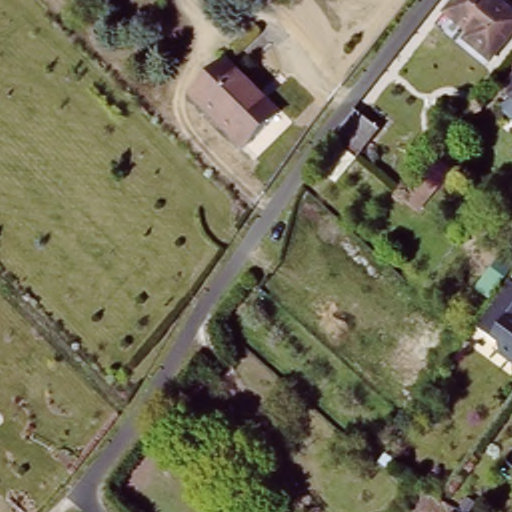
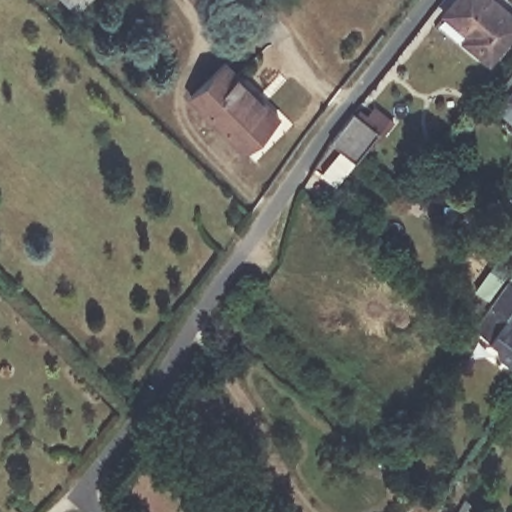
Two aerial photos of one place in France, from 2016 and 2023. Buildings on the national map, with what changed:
unchanged [(69,0),(82,0),(77,5),(75,6),(69,0)]
unchanged [(491,0),(497,5),(500,1),(512,12),(512,36),(491,61),(467,41),(471,35),(447,15),(459,0),(491,0)]
unchanged [(180,91),(214,56),(227,69),(230,66),(282,117),(244,155),(234,145),(180,91)]
unchanged [(507,99),(512,93),(512,102),(507,99)]
unchanged [(357,163),(330,141),(352,113),(379,134),(357,163)]
unchanged [(512,292),(512,323),(512,372),(493,359),(491,348),(469,332),(499,290),(502,285),(512,292)]
unchanged [(452,509),(458,512),(451,512),(452,509)]

